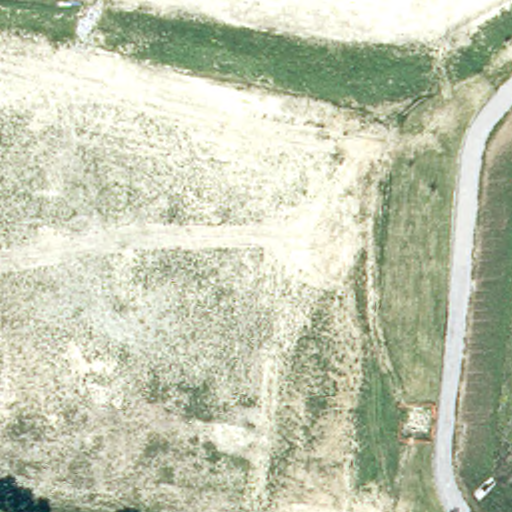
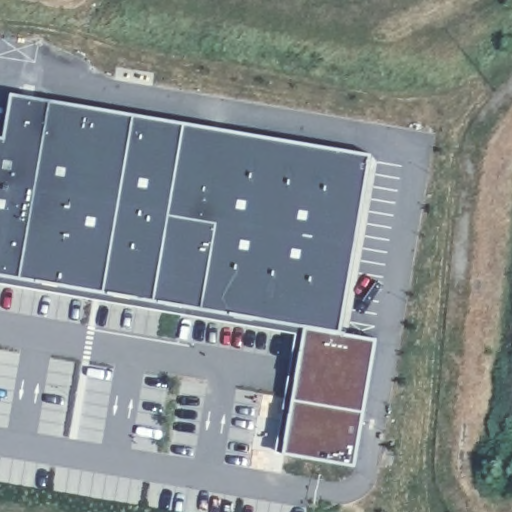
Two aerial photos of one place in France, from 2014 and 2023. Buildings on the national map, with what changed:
new [(346,336),(379,341),(360,471),(288,456),(308,330),(0,278),(0,138),(6,139),(13,94),(373,155),(346,336)]

